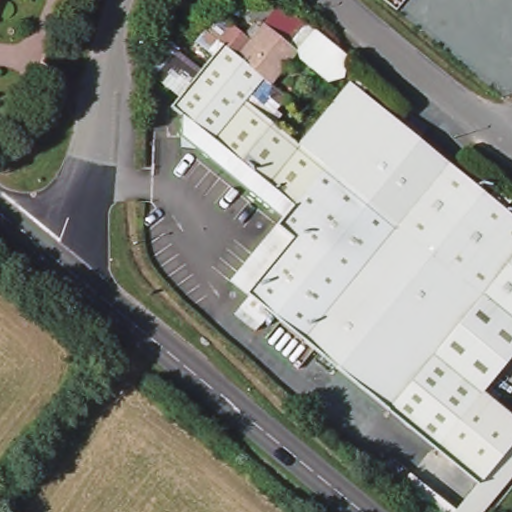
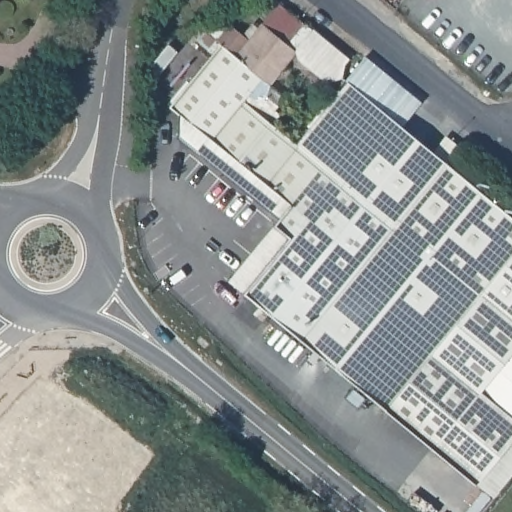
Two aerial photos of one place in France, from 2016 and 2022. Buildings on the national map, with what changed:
unchanged [(227,278),(275,218),(176,139),(179,116),(168,107),(176,98),(140,71),(167,39),(202,64),(210,56),(204,51),(229,23),(246,39),(257,23),(275,2),(311,31),(269,86),(284,99),(267,121),(393,222),(444,160),(512,217),(512,353),(483,387),(430,449),(227,278)]
unchanged [(295,52),(311,31),(315,25),(357,61),(337,86),(295,52)]
unchanged [(393,222),(299,146),(351,81),(444,160),(393,222)]
unchanged [(398,490),(412,474),(457,506),(475,485),(430,449),(483,387),(512,411),(512,480),(486,512),(424,512),(398,490)]

